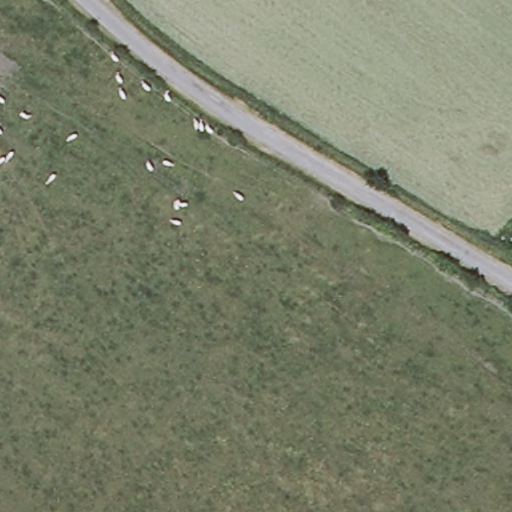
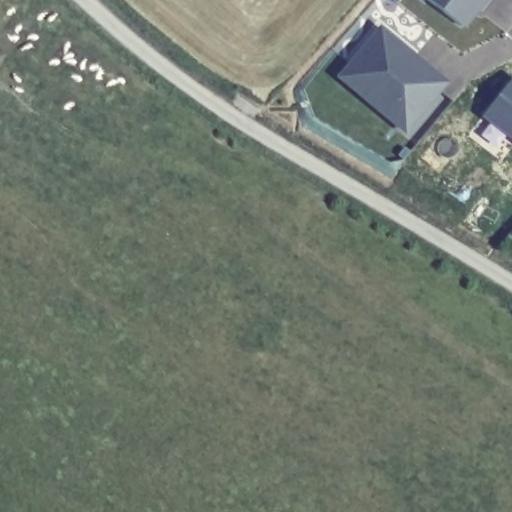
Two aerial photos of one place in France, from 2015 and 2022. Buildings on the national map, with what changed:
new [(477,5),(474,3),(458,23),(428,0),(481,0),(477,5)]
new [(450,82),(405,135),(335,76),(379,25),(450,82)]
new [(482,116),(512,76),(512,141),(482,116)]

